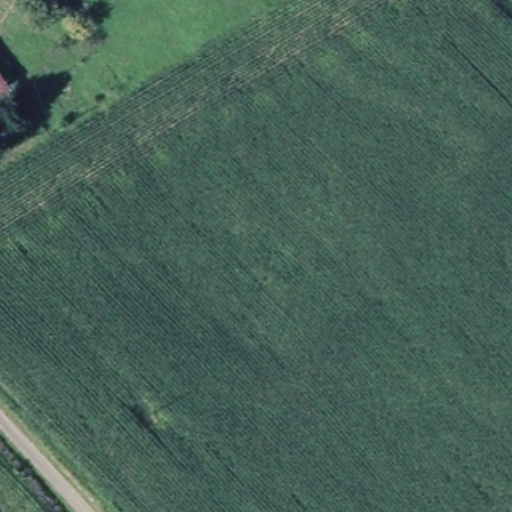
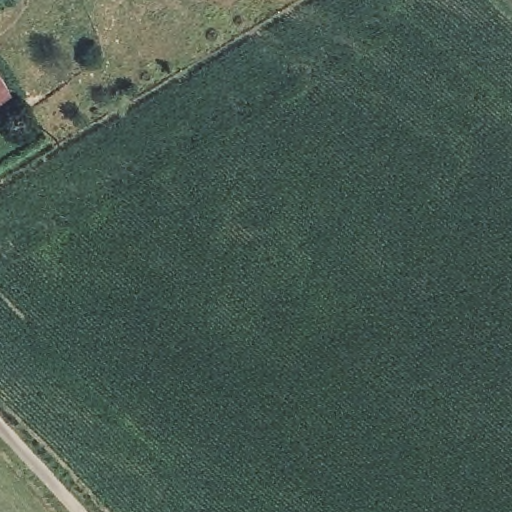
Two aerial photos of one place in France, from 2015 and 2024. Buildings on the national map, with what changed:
unchanged [(6,94),(0,98),(0,85),(6,94)]

